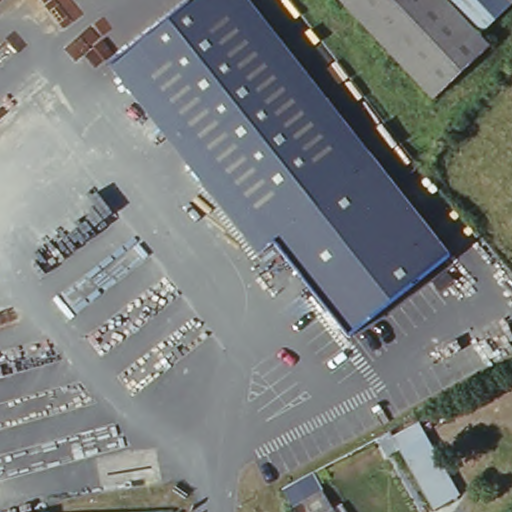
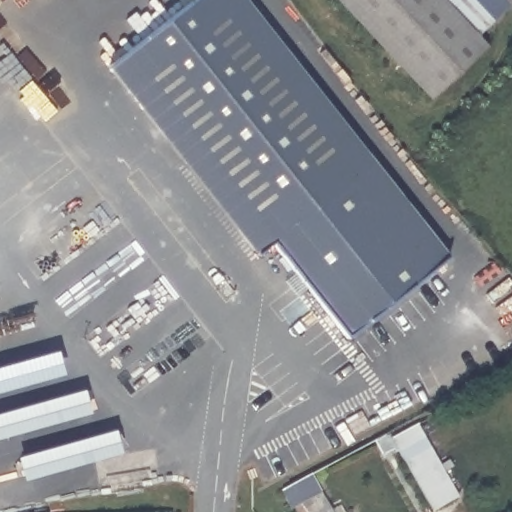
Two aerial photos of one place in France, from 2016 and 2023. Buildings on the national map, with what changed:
unchanged [(438,262),(338,344),(263,254),(248,267),(81,63),(157,0),(224,0),(438,262)]
unchanged [(454,249),(438,262),(224,0),(250,0),(454,249)]
unchanged [(376,34),(343,0),(403,0),(376,34)]
unchanged [(483,36),(492,46),(439,100),(376,34),(403,0),(512,0),(512,7),(483,36)]
new [(0,368),(53,354),(59,375),(0,391),(0,368)]
new [(0,413),(85,391),(91,413),(0,438),(0,413)]
new [(115,430),(121,452),(24,480),(18,458),(115,430)]
unchanged [(434,501),(411,467),(418,462),(409,449),(419,442),(451,490),(441,496),(434,501)]
unchanged [(309,482),(317,495),(298,503),(290,493),(309,482)]
unchanged [(332,509),(340,503),(347,512),(307,512),(304,508),(323,496),(332,509)]
unchanged [(50,507),(51,512),(24,512),(24,511),(50,507)]

